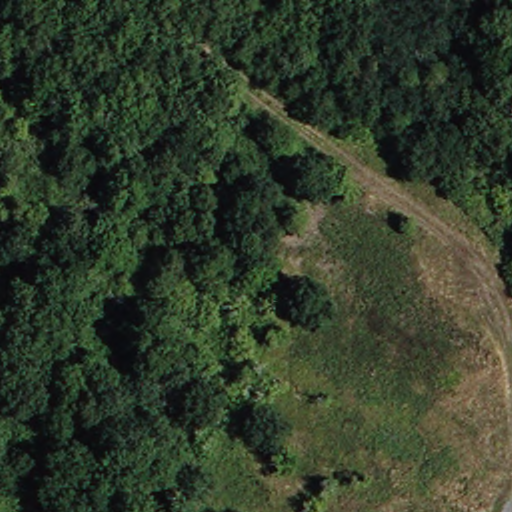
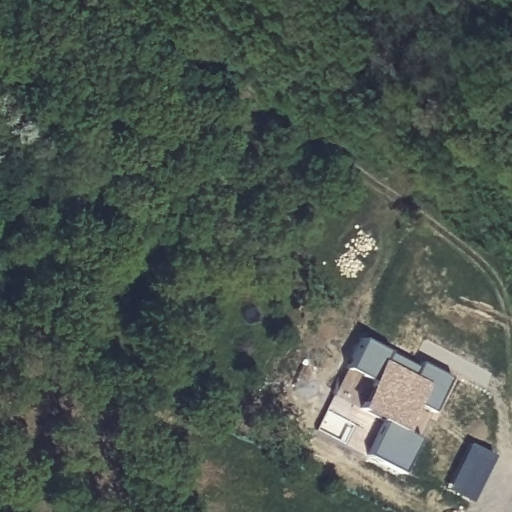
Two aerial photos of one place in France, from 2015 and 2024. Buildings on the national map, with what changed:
new [(433,411),(417,401),(404,430),(421,438),(402,473),(368,455),(383,426),(353,410),(370,380),(347,367),(363,338),(417,367),(420,362),(451,378),(433,411)]
new [(471,502),(447,490),(470,442),(496,455),(471,502)]

